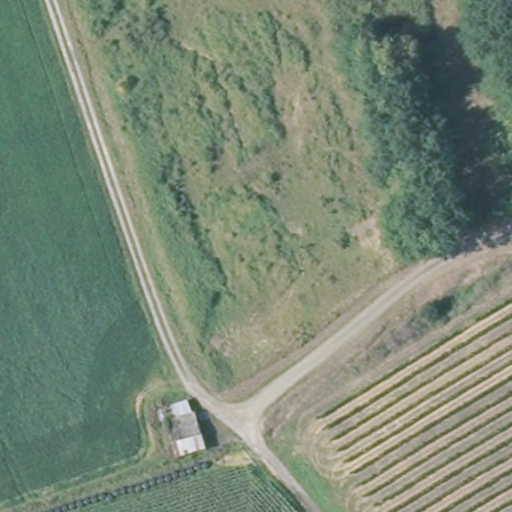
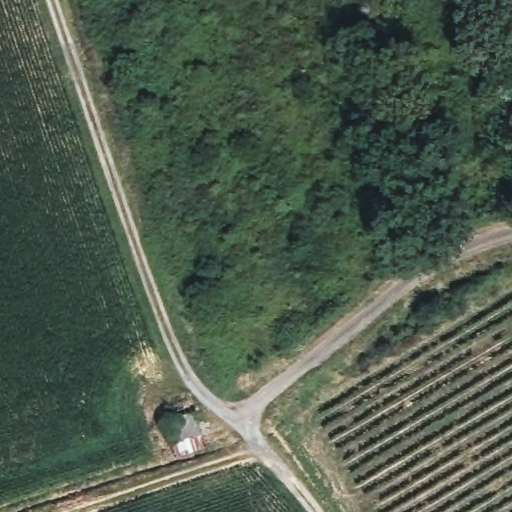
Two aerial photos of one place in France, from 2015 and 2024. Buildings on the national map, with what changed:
unchanged [(197,392),(211,447),(175,456),(160,400),(197,392)]

